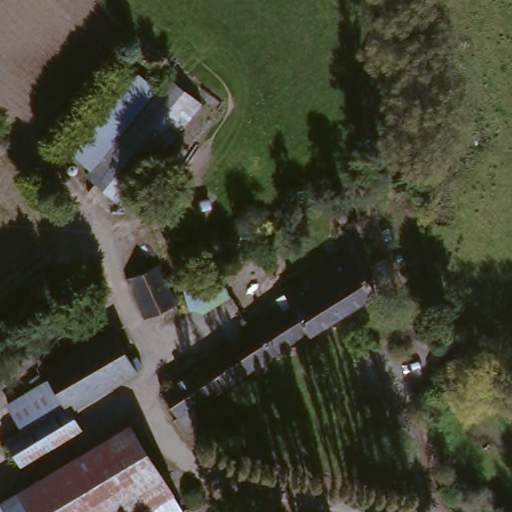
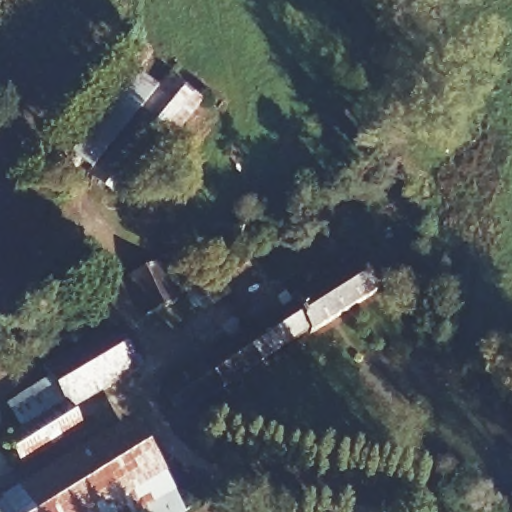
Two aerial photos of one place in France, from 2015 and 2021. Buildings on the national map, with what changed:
unchanged [(126,202),(60,165),(129,71),(156,87),(164,76),(202,105),(126,202)]
unchanged [(225,389),(233,401),(178,436),(168,421),(176,416),(162,394),(294,307),(285,294),(348,252),(374,299),(316,339),(313,334),(225,389)]
unchanged [(224,293),(187,312),(172,286),(206,264),(224,293)]
unchanged [(127,280),(126,276),(159,269),(164,286),(172,311),(139,320),(127,280)]
unchanged [(42,374),(103,330),(121,356),(128,351),(138,365),(129,370),(133,376),(69,419),(79,433),(21,471),(1,441),(53,405),(58,401),(42,374)]
unchanged [(58,401),(53,405),(21,426),(6,402),(44,378),(58,401)]
unchanged [(6,512),(0,501),(0,496),(125,427),(173,512),(6,512)]

